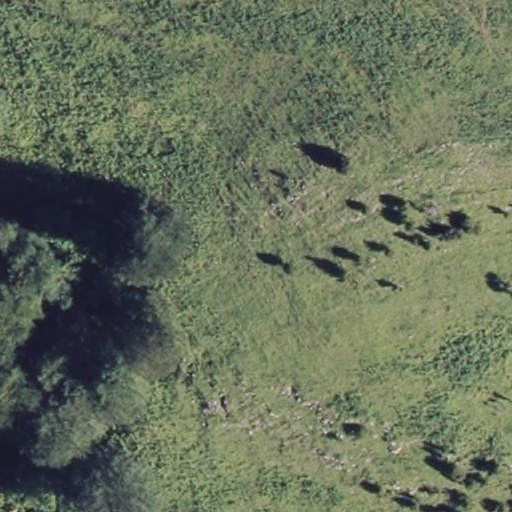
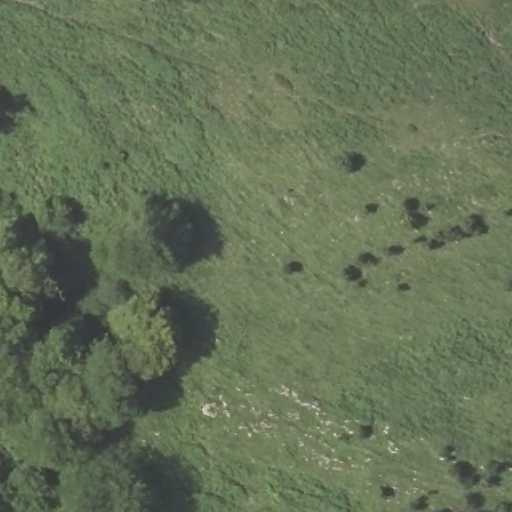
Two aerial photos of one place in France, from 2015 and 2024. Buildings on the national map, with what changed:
[]

